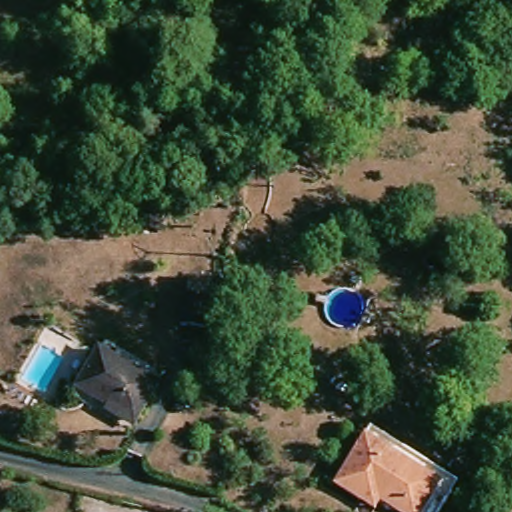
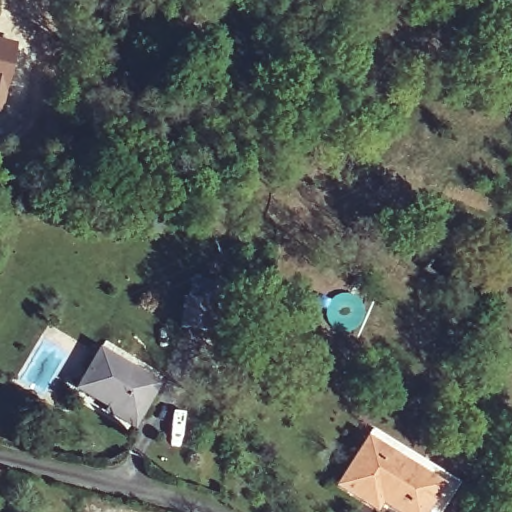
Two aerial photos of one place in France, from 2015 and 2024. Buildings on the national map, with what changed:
new [(17,39),(2,112),(0,112),(0,35),(17,39)]
unchanged [(272,282),(270,329),(246,327),(250,282),(272,282)]
unchanged [(186,325),(190,298),(210,300),(207,327),(186,325)]
unchanged [(155,386),(134,421),(78,389),(98,354),(155,386)]
unchanged [(337,488),(355,458),(358,454),(371,433),(456,484),(447,501),(443,506),(440,512),(396,512),(383,505),(379,512),(375,512),(359,503),(337,488)]

